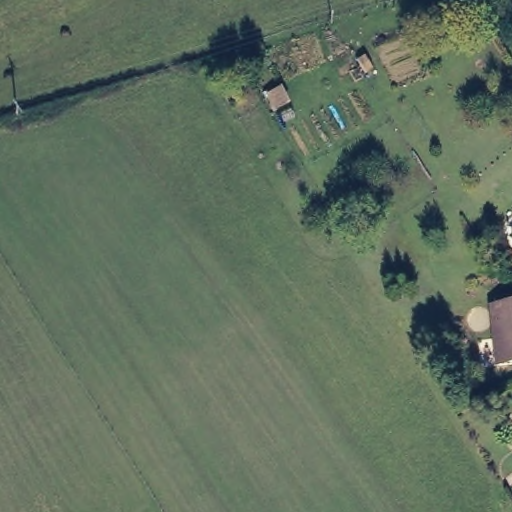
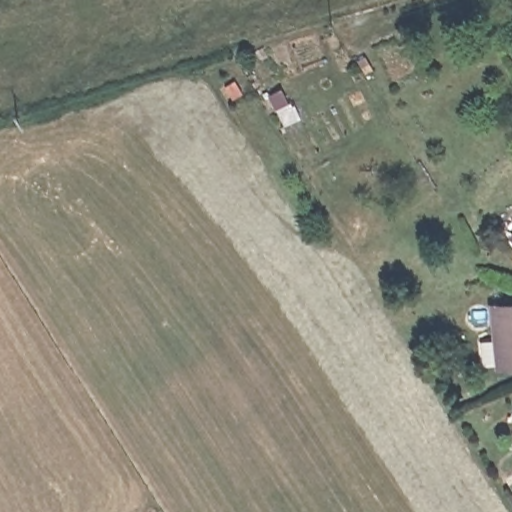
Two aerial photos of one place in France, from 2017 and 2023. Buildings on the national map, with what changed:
unchanged [(512,304),(512,363),(494,364),(488,306),(512,304)]

